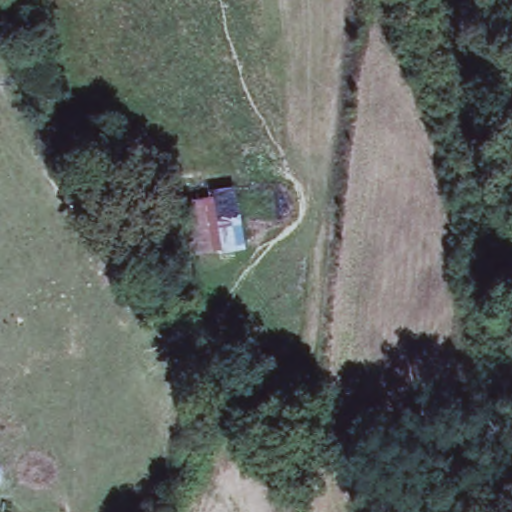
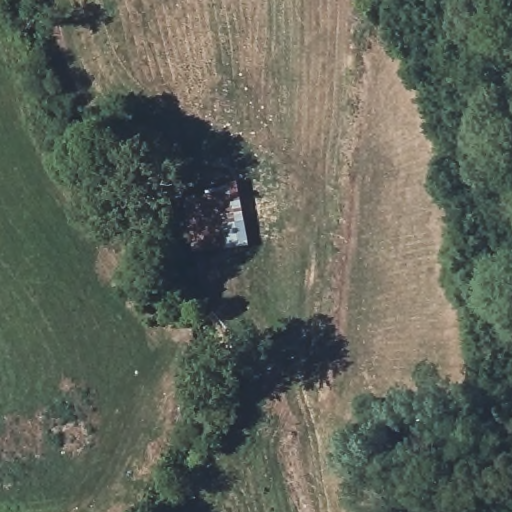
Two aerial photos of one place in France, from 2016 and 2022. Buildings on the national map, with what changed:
unchanged [(195,254),(186,199),(213,195),(212,187),(245,183),(250,246),(195,254)]

